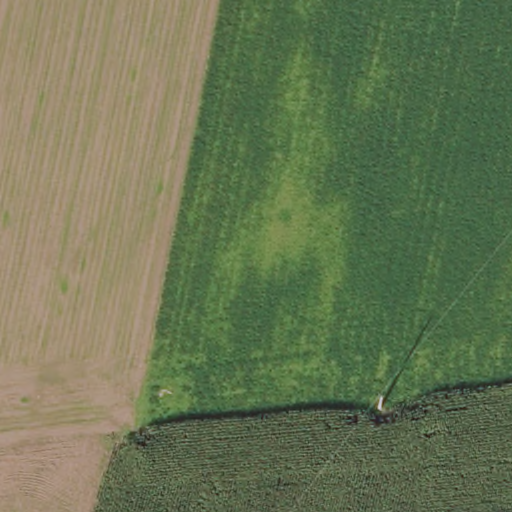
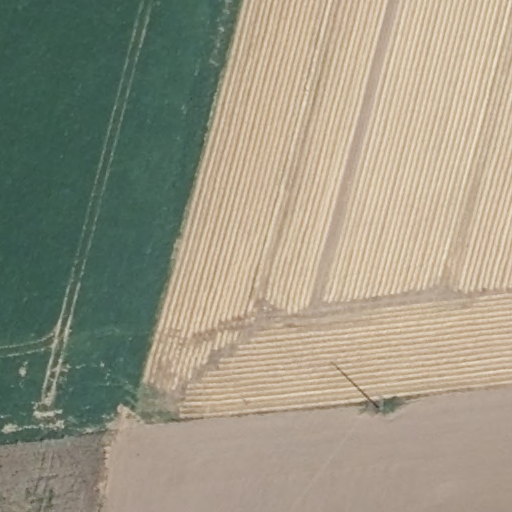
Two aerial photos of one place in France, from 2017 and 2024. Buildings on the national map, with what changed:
[]

